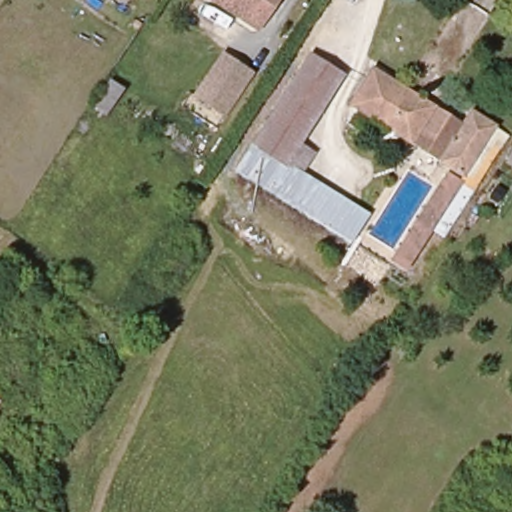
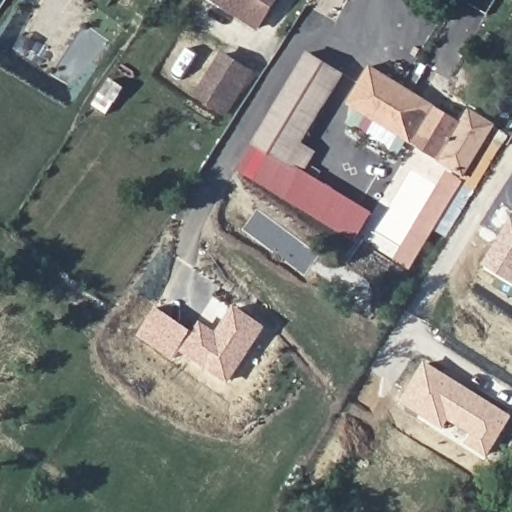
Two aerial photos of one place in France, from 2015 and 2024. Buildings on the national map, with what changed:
unchanged [(276,0),(259,25),(220,0),(276,0)]
unchanged [(238,167),(244,157),(313,49),(344,68),(299,140),(314,150),(301,171),(285,196),(238,167)]
unchanged [(196,99),(223,56),(250,73),(224,115),(196,99)]
unchanged [(465,127),(474,113),(496,126),(465,177),(351,109),(373,71),(465,127)]
new [(445,238),(435,230),(463,185),(461,183),(465,177),(496,126),(509,135),(445,238)]
unchanged [(285,196),(301,171),(368,213),(352,238),(285,196)]
unchanged [(449,176),(463,185),(408,273),(394,264),(449,176)]
new [(512,219),(512,283),(482,264),(512,219)]
new [(233,304),(266,325),(226,383),(177,350),(171,360),(134,335),(156,306),(192,330),(199,319),(215,330),(233,304)]
new [(512,419),(488,457),(465,443),(471,433),(448,421),(444,429),(400,402),(425,360),(512,415),(512,419)]

